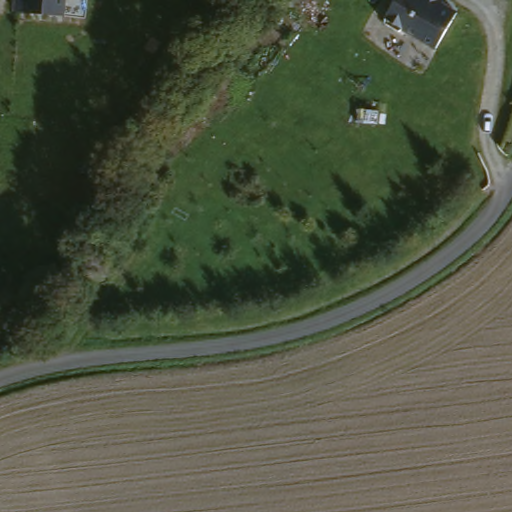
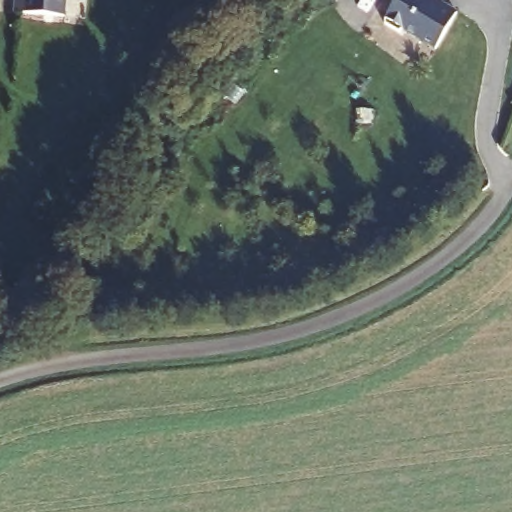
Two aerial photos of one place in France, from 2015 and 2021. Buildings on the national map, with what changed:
unchanged [(32,19),(33,0),(73,0),(70,21),(32,19)]
unchanged [(445,42),(412,24),(407,27),(393,20),(393,14),(401,0),(453,0),(465,7),(445,42)]

